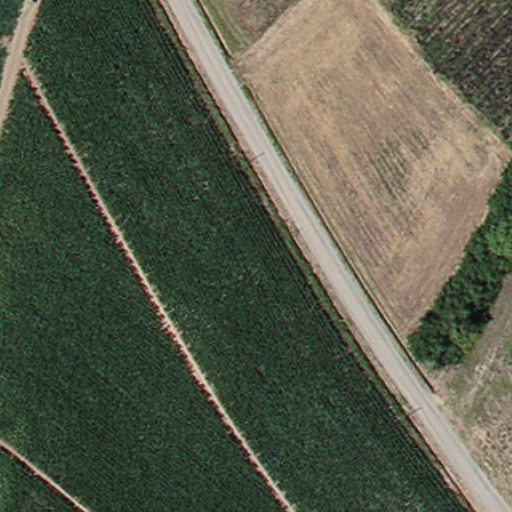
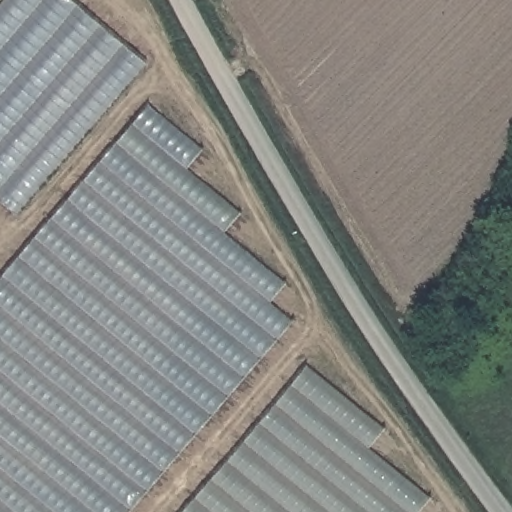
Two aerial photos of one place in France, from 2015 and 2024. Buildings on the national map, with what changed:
new [(0,202),(0,5),(4,0),(71,0),(146,62),(15,216),(0,202)]
new [(207,153),(190,170),(241,215),(223,236),(283,282),(271,301),(293,321),(130,512),(0,512),(0,278),(147,105),(207,153)]
new [(387,429),(371,448),(432,498),(420,512),(184,512),(308,366),(387,429)]

